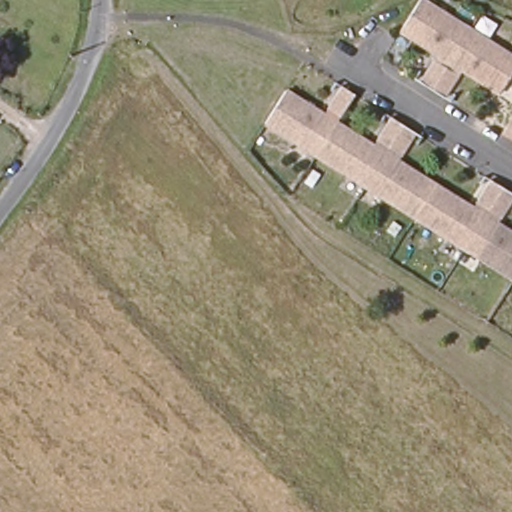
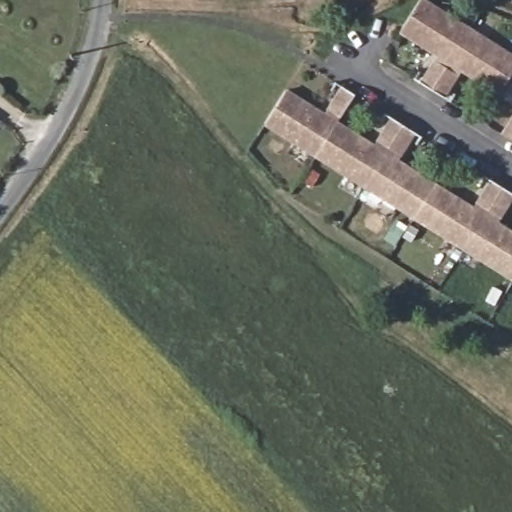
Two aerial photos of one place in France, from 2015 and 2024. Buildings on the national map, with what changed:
unchanged [(417,0),(429,0),(512,51),(512,59),(497,85),(438,48),(401,25),(417,0)]
unchanged [(417,80),(433,57),(445,64),(457,72),(443,96),(430,88),(417,80)]
unchanged [(318,157),(267,124),(289,91),(339,123),(318,157)]
unchanged [(354,101),(341,119),(330,111),(341,93),(354,101)]
unchanged [(512,118),(512,142),(501,135),(512,118)]
unchanged [(367,189),(318,157),(339,123),(388,154),(367,189)]
unchanged [(403,158),(391,149),(380,142),(391,124),(403,132),(414,138),(403,158)]
unchanged [(417,221),(367,189),(388,154),(439,187),(417,221)]
unchanged [(476,202),(488,185),(500,193),(512,200),(512,202),(502,219),(489,211),(476,202)]
unchanged [(465,251),(417,221),(439,187),(485,216),(465,251)]
unchanged [(485,216),(512,233),(512,281),(465,251),(485,216)]

